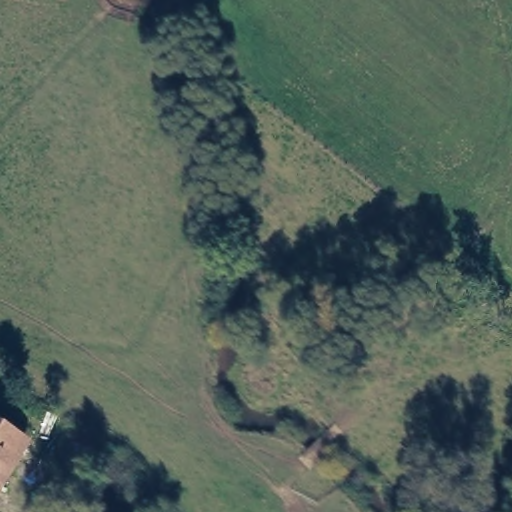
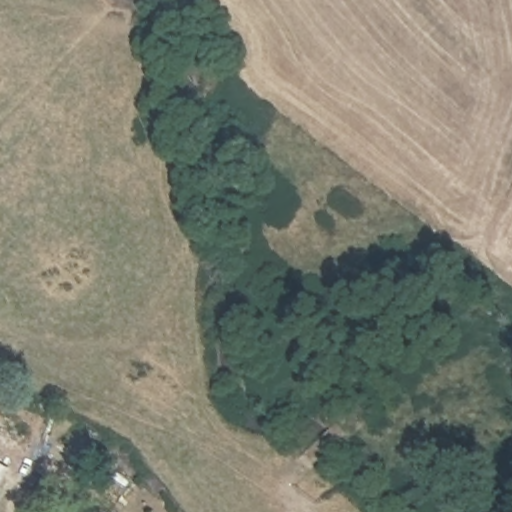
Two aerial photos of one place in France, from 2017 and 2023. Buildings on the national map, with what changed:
unchanged [(0,486),(0,423),(24,433),(0,486)]

